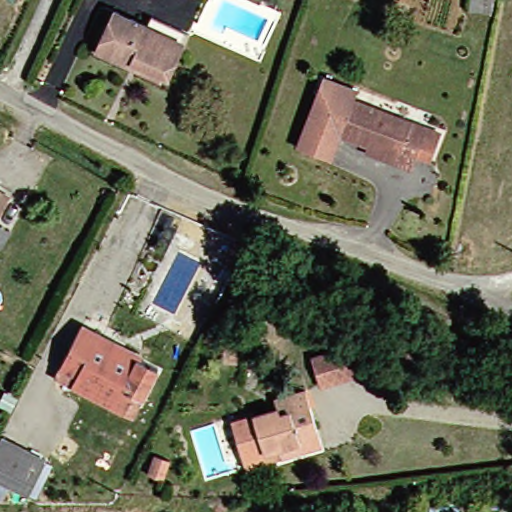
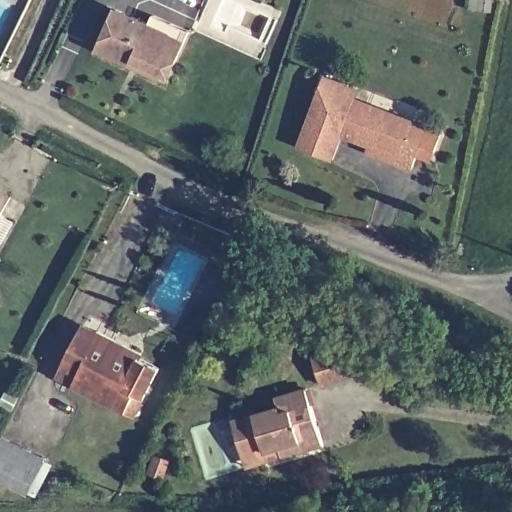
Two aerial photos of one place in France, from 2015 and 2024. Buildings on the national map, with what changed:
unchanged [(127,70),(90,51),(109,12),(145,30),(152,18),(185,36),(180,46),(164,77),(160,86),(127,70)]
unchanged [(362,141),(336,132),(327,155),(295,142),(320,75),(352,87),(348,97),(423,125),(437,131),(426,160),(411,154),(406,167),(390,162),(360,152),(362,141)]
unchanged [(0,215),(0,190),(10,196),(0,215)]
unchanged [(15,227),(0,251),(0,218),(15,227)]
unchanged [(139,407),(129,401),(120,417),(66,392),(73,377),(62,371),(67,359),(62,357),(76,329),(96,340),(139,360),(157,370),(139,407)]
unchanged [(276,408),(271,396),(301,385),(323,442),(300,453),(295,442),(262,453),(249,418),(276,408)]
unchanged [(35,497),(26,492),(24,492),(7,485),(0,501),(0,500),(0,438),(1,435),(12,413),(0,407),(0,395),(3,389),(19,399),(27,403),(10,440),(44,457),(42,460),(51,465),(35,497)]
unchanged [(164,465),(156,483),(140,476),(147,458),(164,465)]

